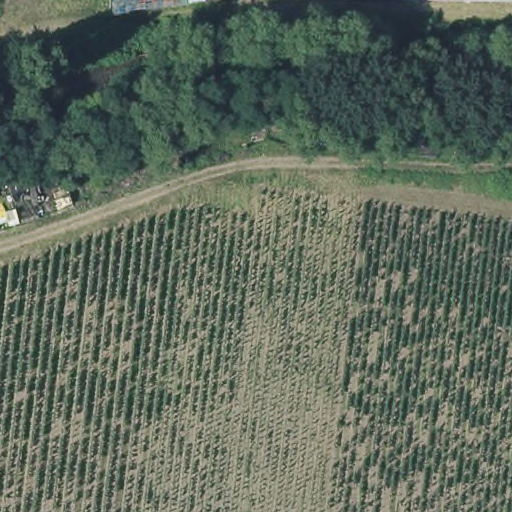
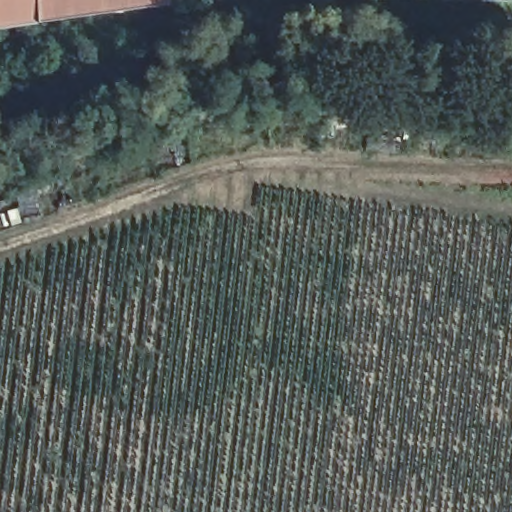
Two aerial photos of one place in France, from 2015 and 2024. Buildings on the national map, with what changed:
new [(168,8),(0,32),(0,0),(168,0),(168,8)]

